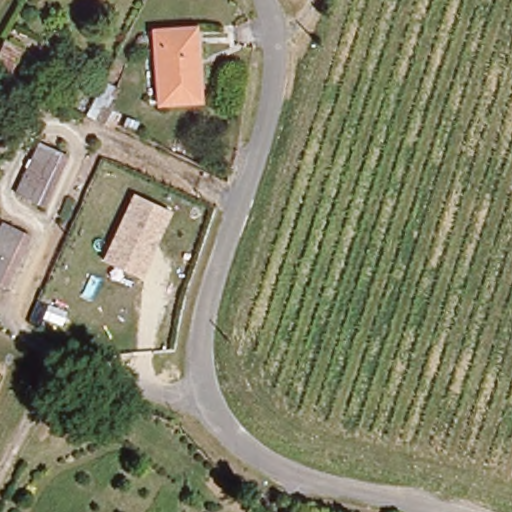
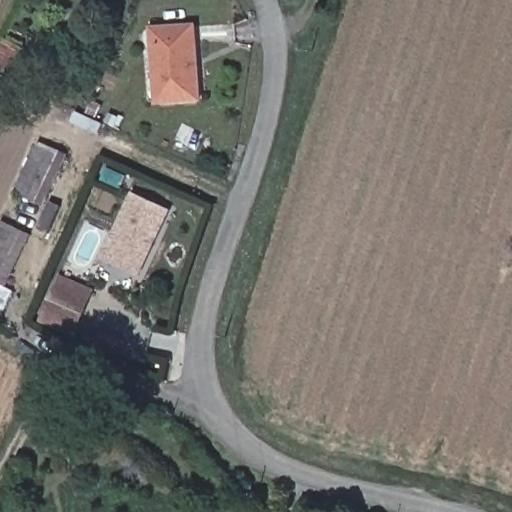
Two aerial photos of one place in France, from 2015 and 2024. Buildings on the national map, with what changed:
unchanged [(162,101),(155,29),(196,26),(201,98),(162,101)]
unchanged [(0,67),(0,51),(7,38),(25,45),(11,73),(0,67)]
unchanged [(5,102),(12,89),(37,101),(30,115),(5,102)]
unchanged [(38,201),(11,188),(35,140),(62,153),(38,201)]
unchanged [(133,192),(173,208),(142,278),(100,259),(133,192)]
unchanged [(4,282),(0,281),(0,224),(2,220),(28,233),(4,282)]
new [(39,322),(60,274),(95,290),(74,338),(39,322)]

